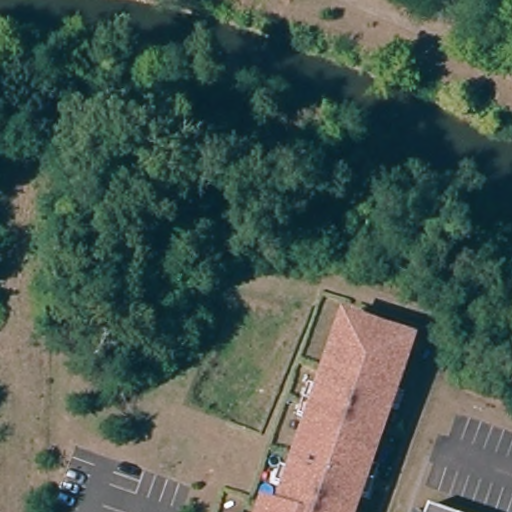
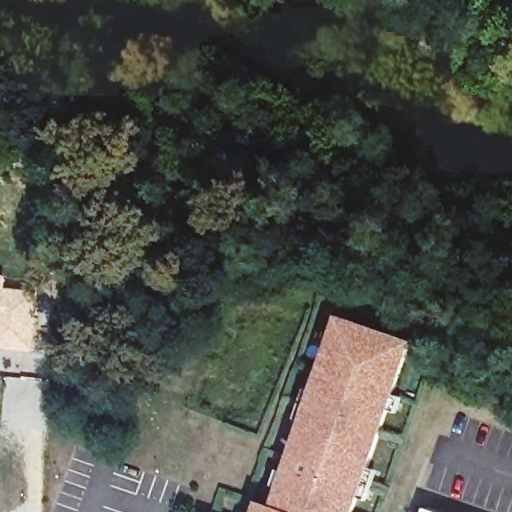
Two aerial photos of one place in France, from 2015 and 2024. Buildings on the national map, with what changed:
new [(6,287),(40,291),(36,351),(0,347),(0,273),(7,274),(6,287)]
unchanged [(264,506),(278,511),(340,333),(343,321),(362,327),(395,338),(414,345),(410,358),(357,509),(356,512),(262,512),(264,506)]
unchanged [(457,512),(426,512),(430,502),(457,512)]

